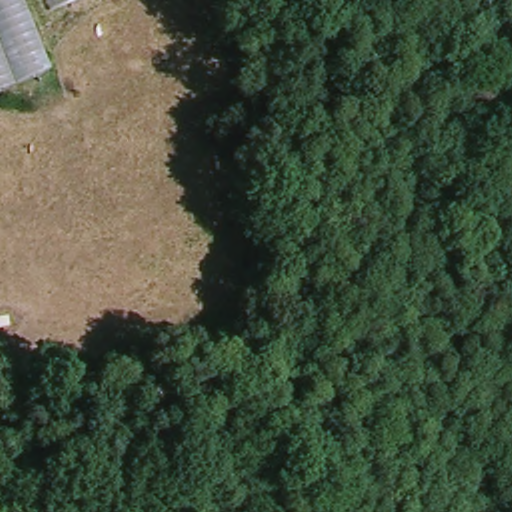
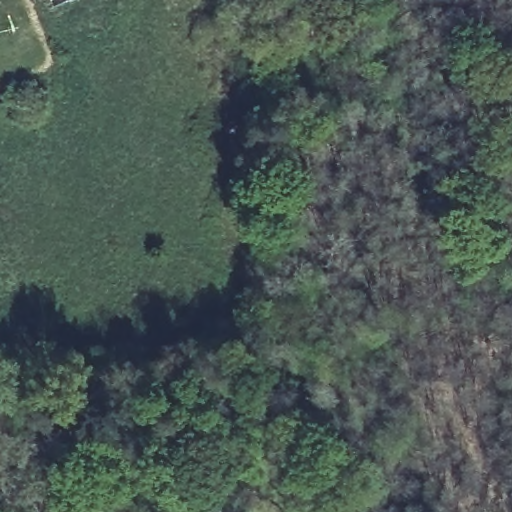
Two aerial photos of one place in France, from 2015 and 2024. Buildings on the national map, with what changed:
demolished [(0,91),(0,0),(25,0),(54,67),(0,91)]
unchanged [(53,9),(49,0),(74,0),(53,9)]

